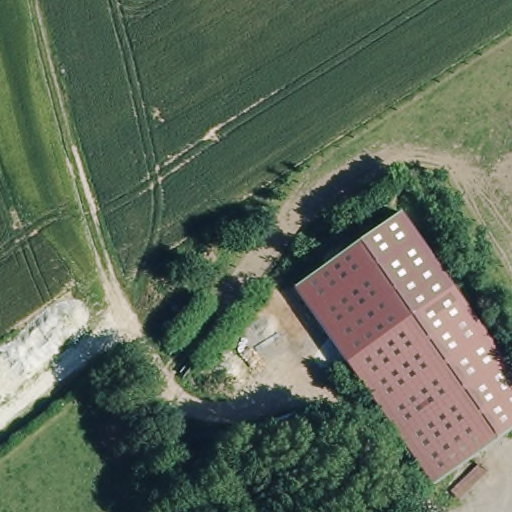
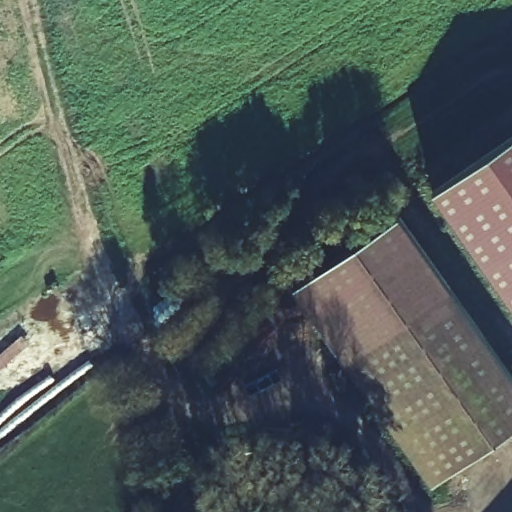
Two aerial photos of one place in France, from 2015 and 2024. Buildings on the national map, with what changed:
new [(512,135),(512,304),(433,190),(512,135)]
unchanged [(343,360),(295,289),(400,215),(450,288),(343,360)]
unchanged [(450,288),(512,375),(512,427),(431,482),(343,360),(450,288)]

